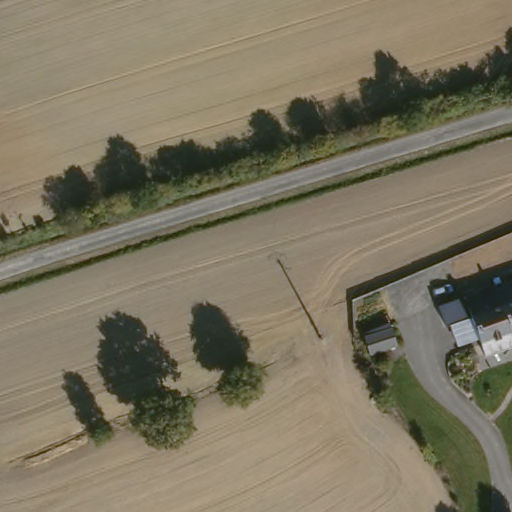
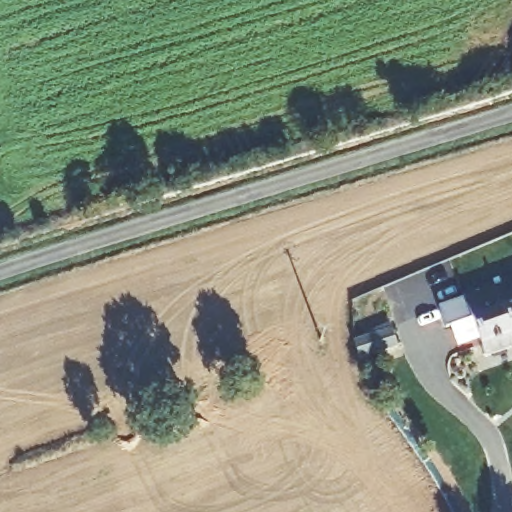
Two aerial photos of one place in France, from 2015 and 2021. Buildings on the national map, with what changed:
unchanged [(488,357),(468,293),(477,290),(479,294),(481,293),(512,283),(512,349),(503,352),(488,357)]

